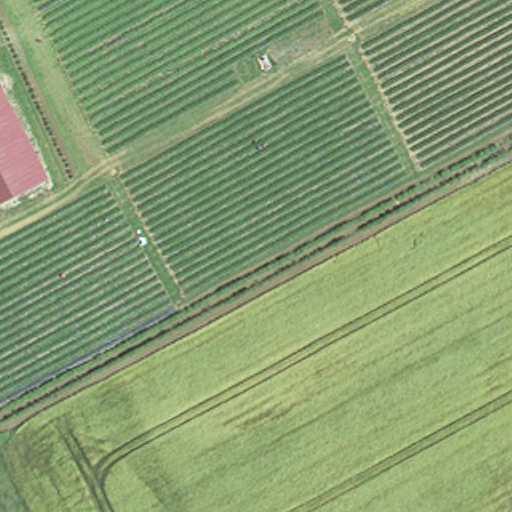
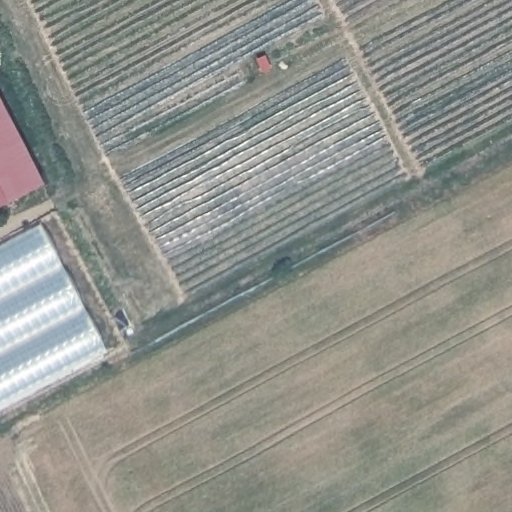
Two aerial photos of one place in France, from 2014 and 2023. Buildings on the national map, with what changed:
unchanged [(48,181),(0,204),(0,89),(48,181)]
new [(43,225),(108,348),(0,404),(0,248),(43,225)]

